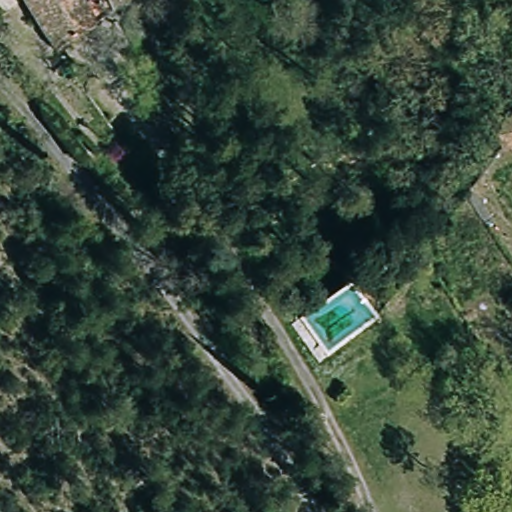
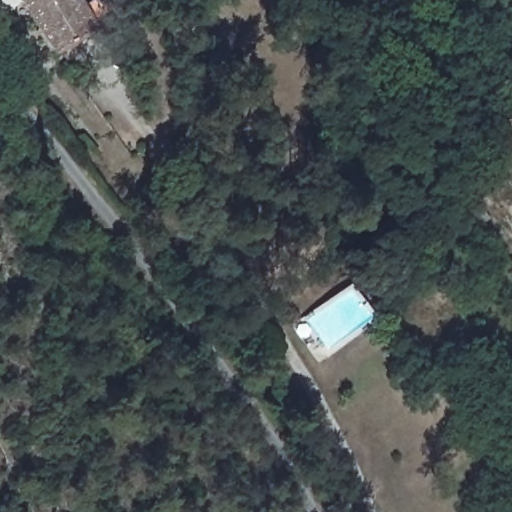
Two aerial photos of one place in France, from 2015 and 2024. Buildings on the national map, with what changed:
unchanged [(97,0),(111,0),(119,12),(61,52),(17,0),(80,0),(85,7),(97,0)]
unchanged [(111,0),(137,0),(119,12),(111,0)]
unchanged [(512,142),(503,130),(512,124),(512,142)]

